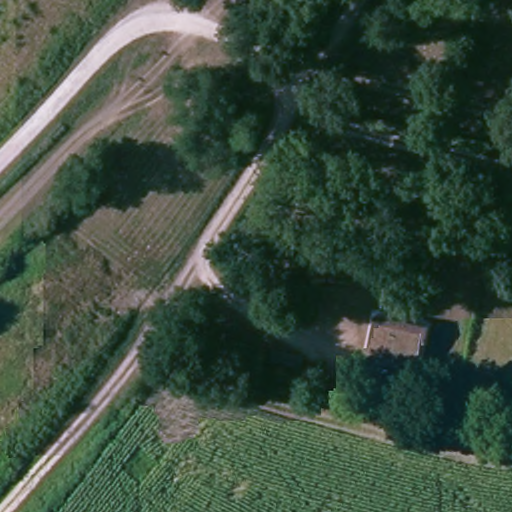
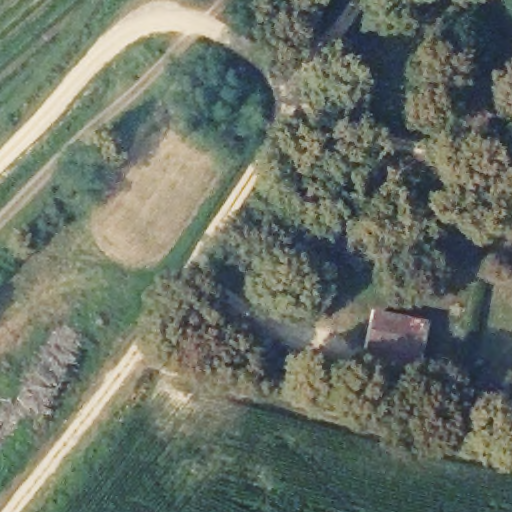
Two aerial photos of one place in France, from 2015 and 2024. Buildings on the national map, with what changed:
unchanged [(369,337),(377,309),(426,321),(419,350),(369,337)]
unchanged [(415,370),(364,357),(369,337),(419,350),(415,370)]

